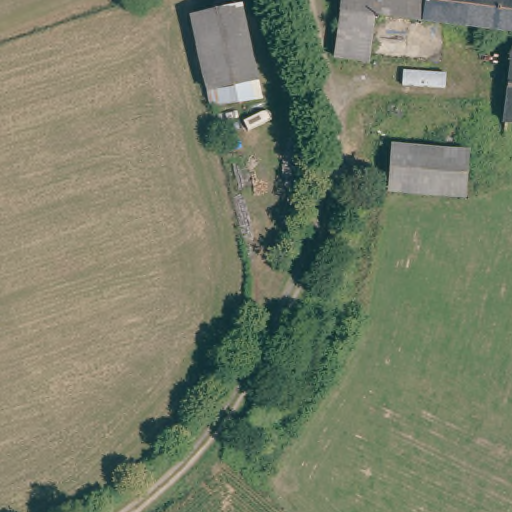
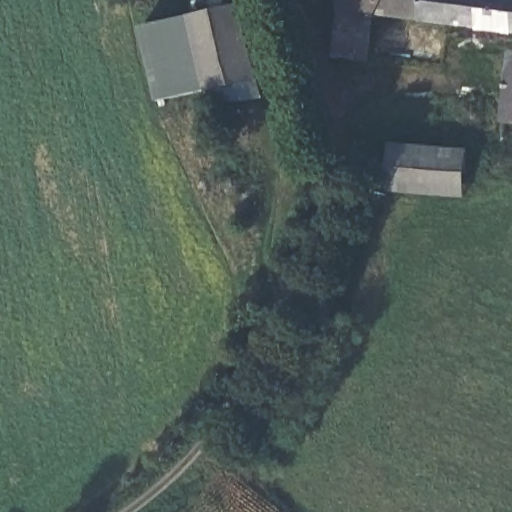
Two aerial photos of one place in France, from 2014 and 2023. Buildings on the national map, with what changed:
unchanged [(344,0),(512,0),(512,30),(375,16),(342,13),(344,0)]
unchanged [(258,81),(209,89),(196,15),(245,7),(258,81)]
unchanged [(370,63),(339,59),(342,13),(375,16),(370,63)]
new [(196,15),(209,89),(156,101),(140,27),(196,15)]
unchanged [(500,153),(512,74),(512,155),(500,153)]
unchanged [(468,148),(466,192),(392,188),(392,145),(468,148)]

